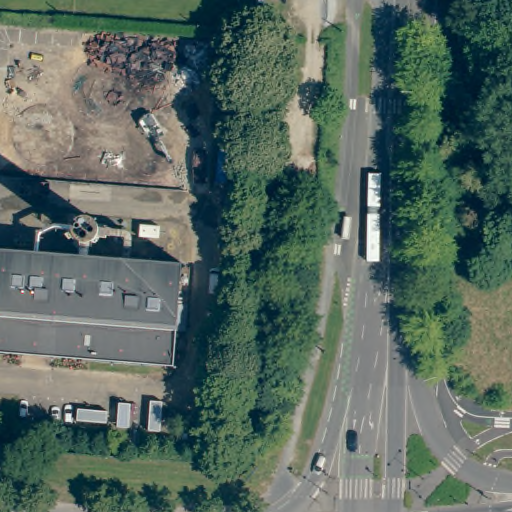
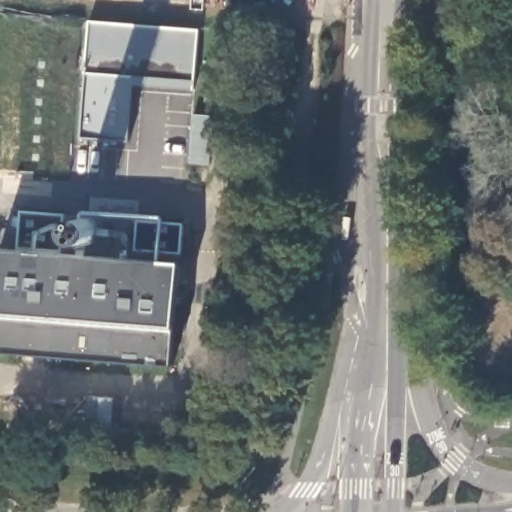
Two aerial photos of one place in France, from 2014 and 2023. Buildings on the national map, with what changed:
new [(196,93),(136,89),(131,141),(80,137),(89,22),(199,31),(196,93)]
unchanged [(278,88),(279,55),(303,57),(301,90),(278,88)]
new [(194,116),(215,117),(211,166),(191,164),(194,116)]
unchanged [(0,257),(1,250),(182,263),(173,366),(0,352),(0,257)]

